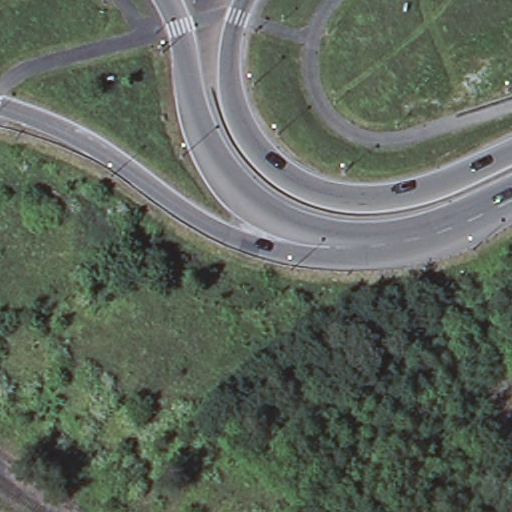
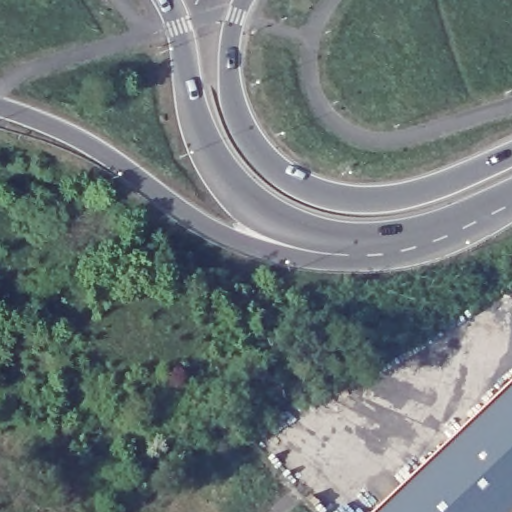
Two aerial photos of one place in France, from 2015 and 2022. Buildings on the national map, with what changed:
new [(512,384),(512,512),(377,512),(512,384)]

